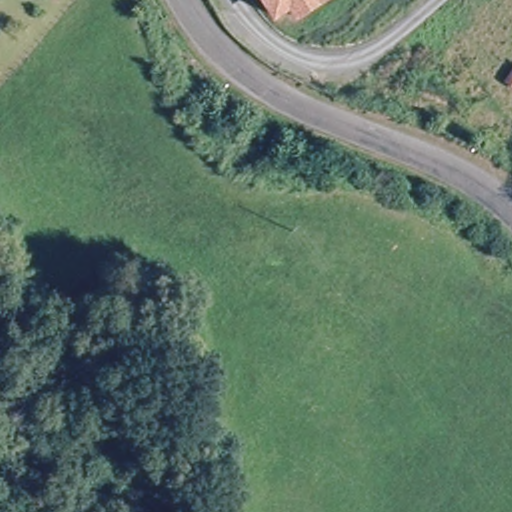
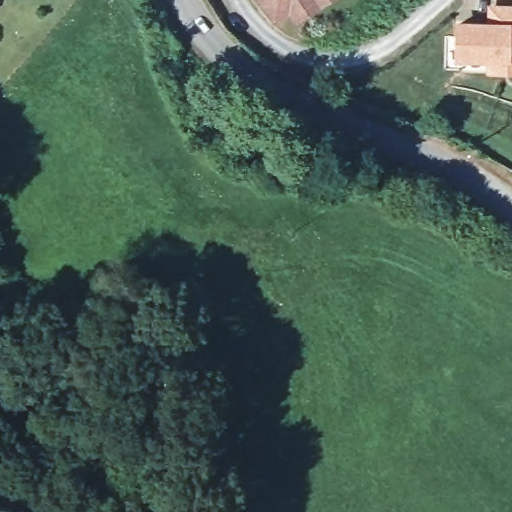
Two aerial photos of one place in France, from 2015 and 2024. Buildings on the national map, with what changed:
unchanged [(296,24),(288,15),(274,24),(258,0),(332,0),(296,24)]
new [(489,3),(512,1),(512,72),(486,73),(486,62),(455,62),(456,22),(489,22),(489,3)]

